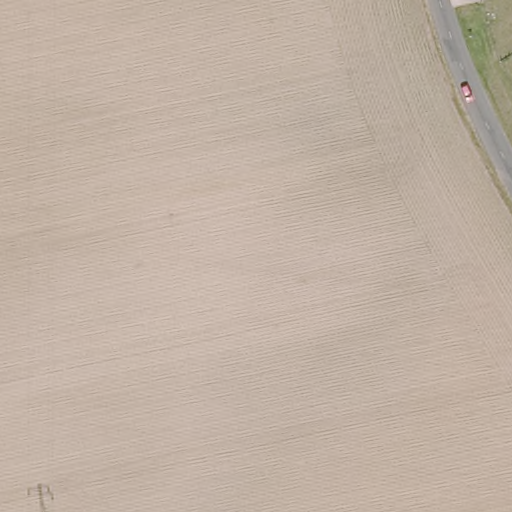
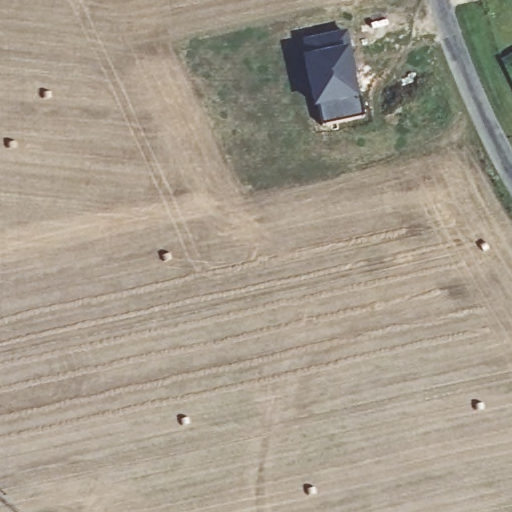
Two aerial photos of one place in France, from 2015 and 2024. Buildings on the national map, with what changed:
new [(349,49),(359,100),(362,116),(322,125),(318,108),(313,109),(305,58),(301,42),(347,33),(349,49)]

